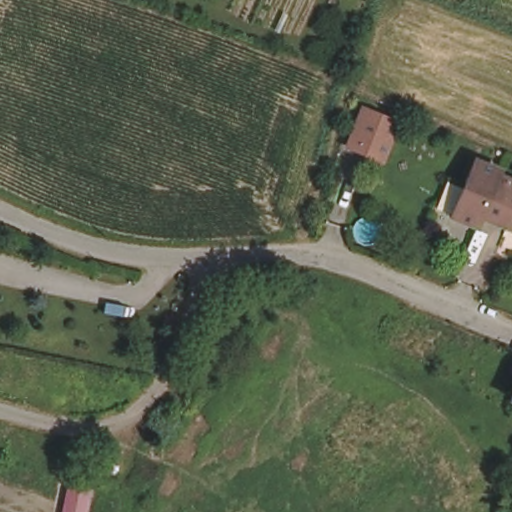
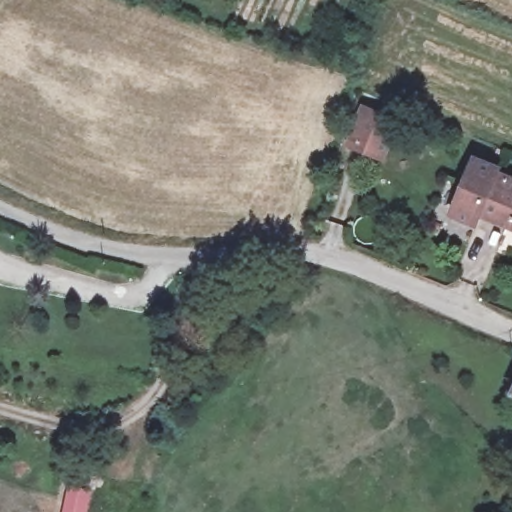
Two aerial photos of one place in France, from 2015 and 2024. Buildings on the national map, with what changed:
unchanged [(385,166),(342,150),(362,101),(404,117),(385,166)]
unchanged [(507,194),(497,222),(483,217),(477,230),(453,219),(475,161),(500,171),(498,177),(512,182),(512,195),(512,196),(507,194)]
unchanged [(507,194),(512,196),(512,195),(512,228),(497,222),(507,194)]
unchanged [(512,390),(512,397),(509,396),(512,390)]
unchanged [(88,493),(85,512),(61,512),(65,487),(88,493)]

